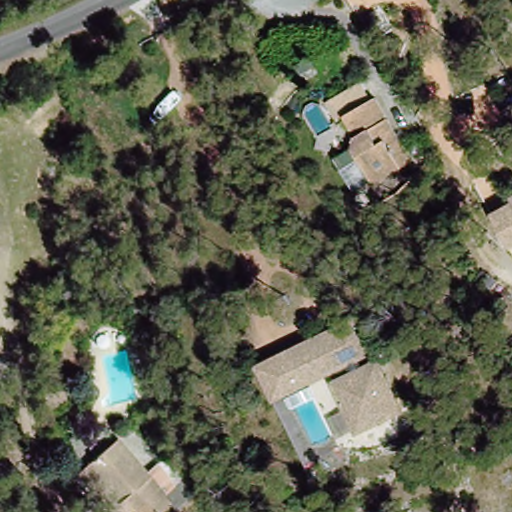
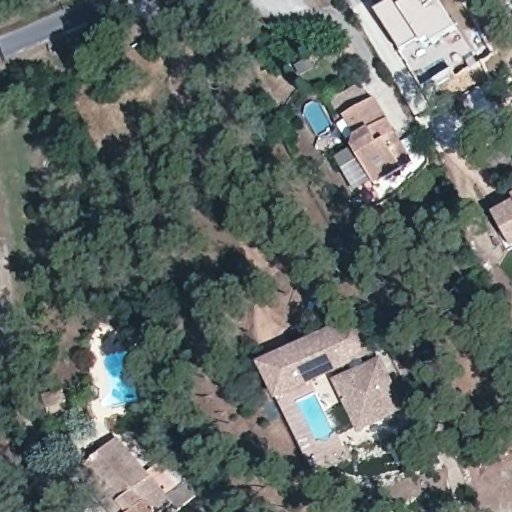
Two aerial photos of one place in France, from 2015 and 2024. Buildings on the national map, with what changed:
new [(440,0),(457,27),(434,43),(431,38),(423,42),(419,37),(400,50),(376,11),(394,0),(440,0)]
unchanged [(412,167),(371,189),(351,150),(356,145),(343,120),(375,101),(412,167)]
unchanged [(496,221),(512,212),(512,250),(496,221)]
unchanged [(281,391),(269,359),(363,318),(376,350),(363,356),(350,362),(281,391)]
unchanged [(333,382),(381,357),(409,411),(361,435),(333,382)]
unchanged [(174,500),(160,512),(108,512),(75,472),(118,435),(174,500)]
new [(161,461),(181,485),(169,494),(149,471),(161,461)]

